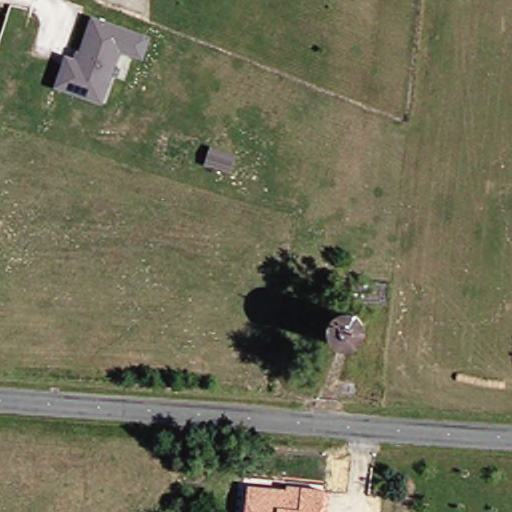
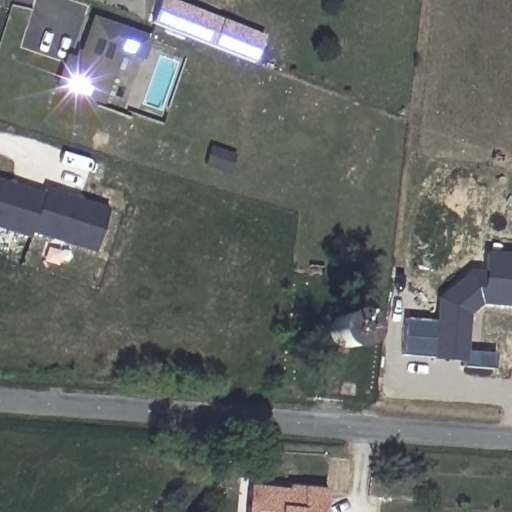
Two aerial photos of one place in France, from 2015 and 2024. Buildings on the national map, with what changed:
unchanged [(149,42),(142,61),(120,53),(101,105),(57,89),(68,60),(79,64),(95,21),(149,42)]
new [(0,226),(0,177),(48,192),(34,236),(0,226)]
new [(50,187),(118,209),(104,253),(36,231),(48,192),(50,187)]
new [(437,298),(470,270),(484,270),(486,253),(512,255),(512,308),(481,305),(469,316),(467,351),(496,353),(495,369),(463,366),(462,360),(434,360),(433,357),(403,355),(405,318),(435,320),(437,298)]
unchanged [(289,491),(289,485),(329,490),(326,512),(244,512),(246,487),(289,491)]

